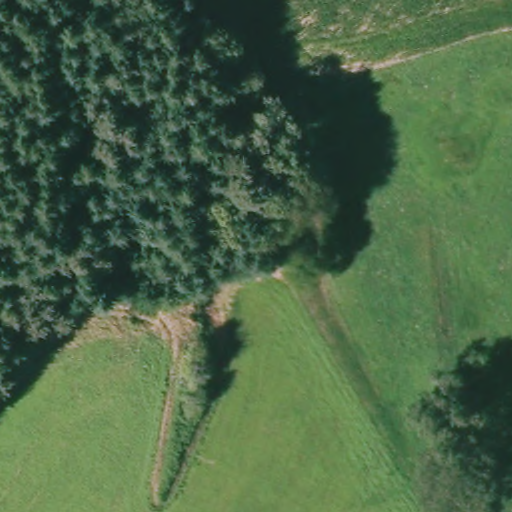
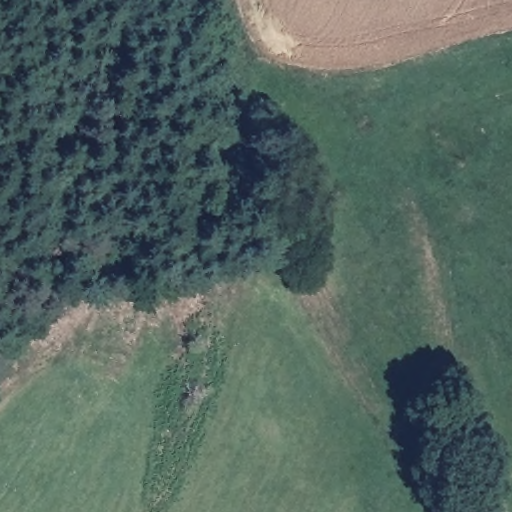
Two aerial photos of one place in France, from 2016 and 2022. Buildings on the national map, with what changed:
[]

